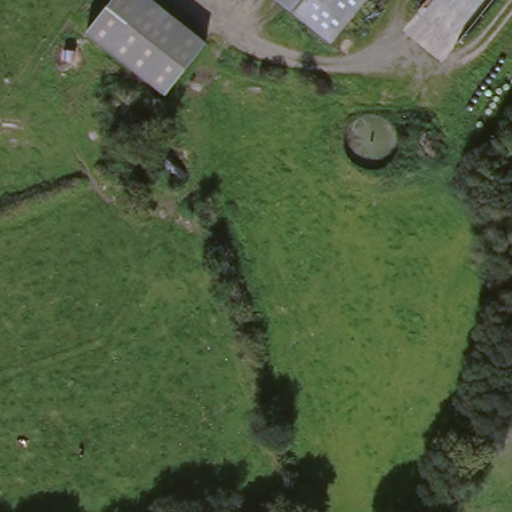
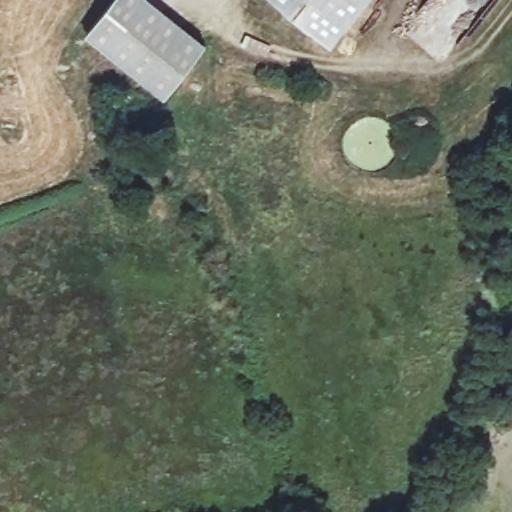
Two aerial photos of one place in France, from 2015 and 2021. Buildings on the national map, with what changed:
unchanged [(86,43),(117,0),(138,0),(201,47),(169,91),(162,100),(157,96),(86,43)]
unchanged [(260,0),(366,0),(326,49),(260,0)]

